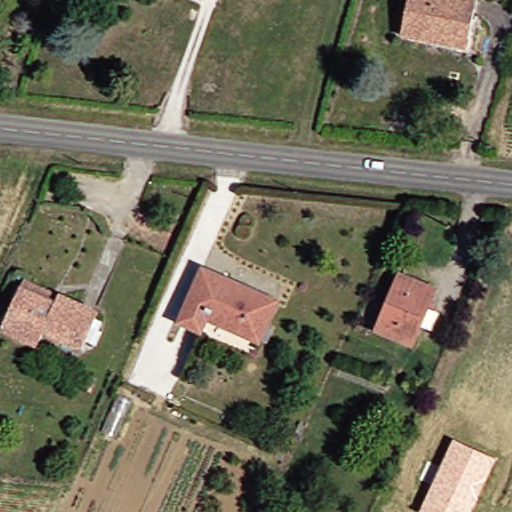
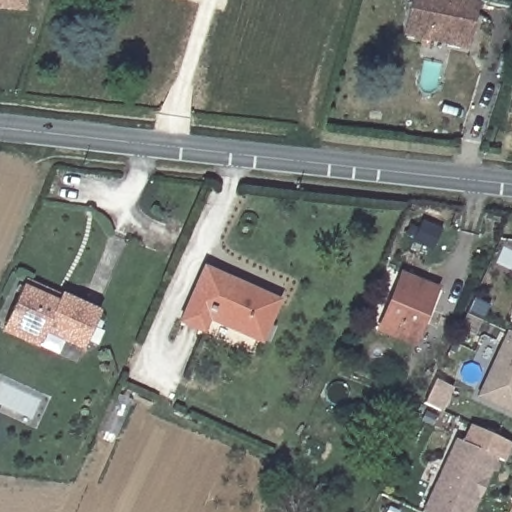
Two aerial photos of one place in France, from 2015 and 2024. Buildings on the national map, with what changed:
new [(0,0),(25,0),(24,11),(0,10),(0,0)]
unchanged [(429,37),(404,30),(412,0),(481,0),(473,34),(469,48),(429,37)]
unchanged [(225,282),(227,277),(279,300),(260,342),(210,320),(204,336),(179,324),(203,271),(225,282)]
unchanged [(4,331),(10,319),(27,284),(32,273),(68,290),(104,307),(86,344),(50,327),(45,337),(39,348),(4,331)]
unchanged [(437,288),(412,346),(379,332),(404,275),(437,288)]
new [(475,398),(506,331),(512,334),(512,415),(475,398)]
unchanged [(512,444),(512,445),(504,464),(496,459),(462,444),(471,425),(512,444)]
unchanged [(421,512),(420,512),(453,440),(496,459),(470,512),(421,512)]

